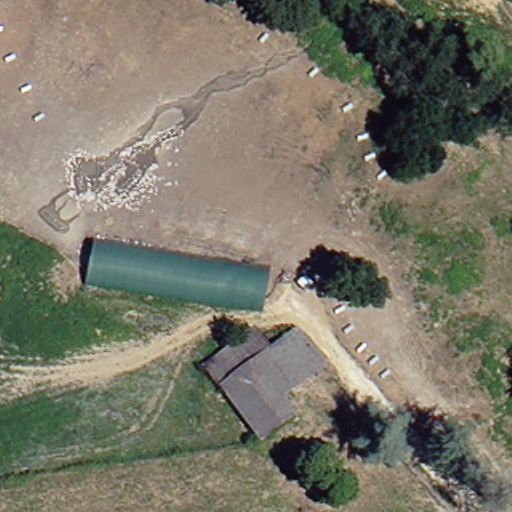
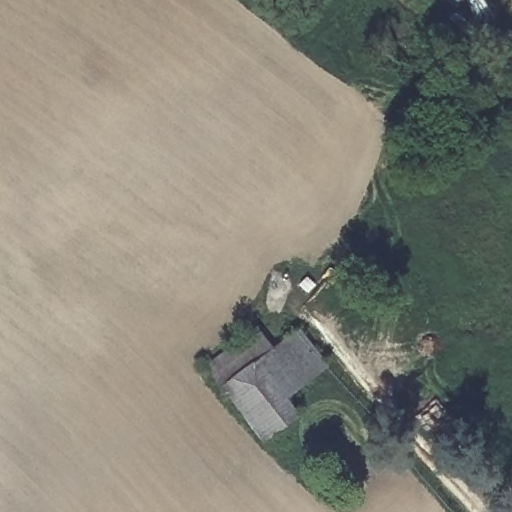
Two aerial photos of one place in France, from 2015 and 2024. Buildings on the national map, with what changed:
demolished [(264,311),(84,286),(92,239),(270,268),(264,311)]
unchanged [(272,435),(252,448),(198,370),(247,333),(264,355),(288,340),(315,375),(271,405),(286,425),(272,435)]

